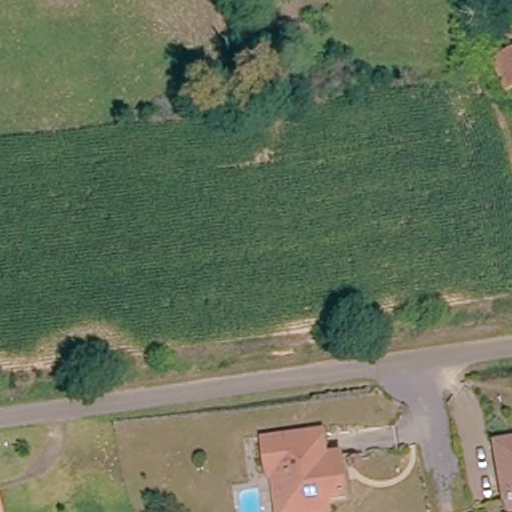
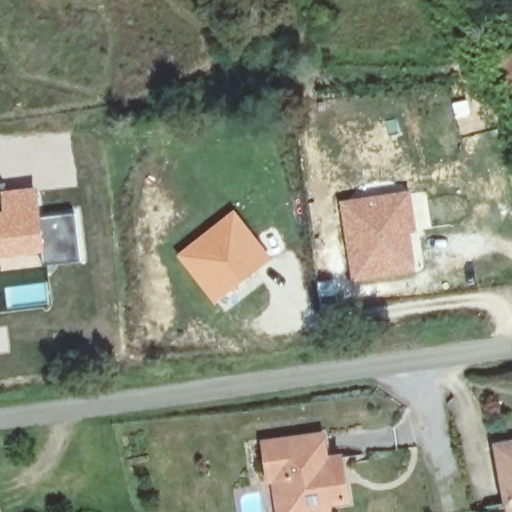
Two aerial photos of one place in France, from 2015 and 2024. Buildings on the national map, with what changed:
unchanged [(500,65),(512,58),(512,89),(511,90),(500,65)]
new [(2,184),(2,190),(2,210),(0,210),(0,184),(2,184)]
new [(2,210),(2,190),(37,186),(41,216),(43,256),(0,262),(0,210),(2,210)]
new [(389,193),(426,190),(432,229),(414,234),(418,275),(351,284),(339,201),(389,193)]
new [(234,209),(273,258),(214,305),(175,255),(234,209)]
new [(76,212),(82,263),(44,266),(43,256),(41,216),(76,212)]
unchanged [(321,512),(286,512),(280,478),(273,479),(267,443),(323,431),(327,453),(341,450),(343,464),(348,495),(331,498),(333,510),(321,512)]
unchanged [(512,449),(512,502),(501,452),(512,449)]

